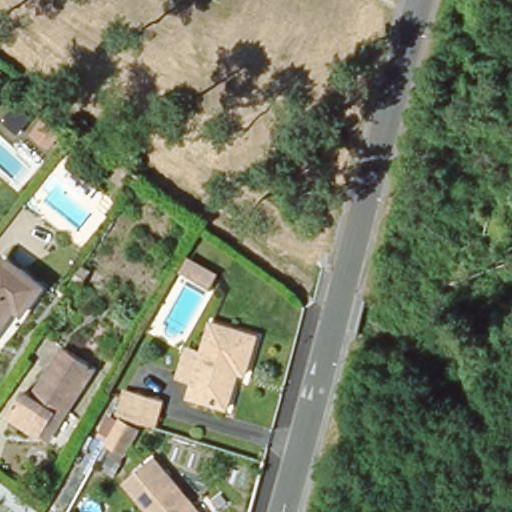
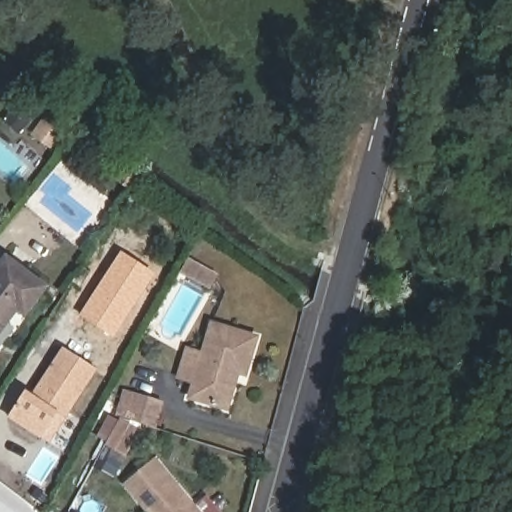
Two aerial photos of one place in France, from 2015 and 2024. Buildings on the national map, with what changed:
unchanged [(130,191),(115,181),(126,165),(140,176),(130,191)]
new [(121,251),(156,272),(114,338),(79,316),(121,251)]
unchanged [(212,268),(205,281),(182,267),(189,256),(212,268)]
unchanged [(5,257),(43,287),(24,312),(17,307),(0,329),(0,263),(5,257)]
unchanged [(222,407),(182,395),(187,381),(171,376),(180,346),(196,351),(205,322),(251,336),(241,372),(234,370),(222,407)]
unchanged [(50,441),(9,414),(24,390),(32,395),(64,347),(96,368),(50,441)]
unchanged [(122,417),(113,415),(120,392),(130,396),(131,392),(156,400),(147,427),(122,419),(122,417)]
unchanged [(114,417),(132,427),(117,452),(100,442),(114,417)]
unchanged [(125,481),(154,457),(201,512),(150,512),(125,481)]

